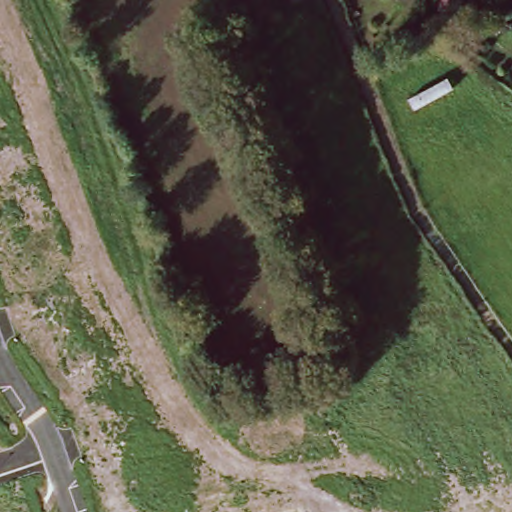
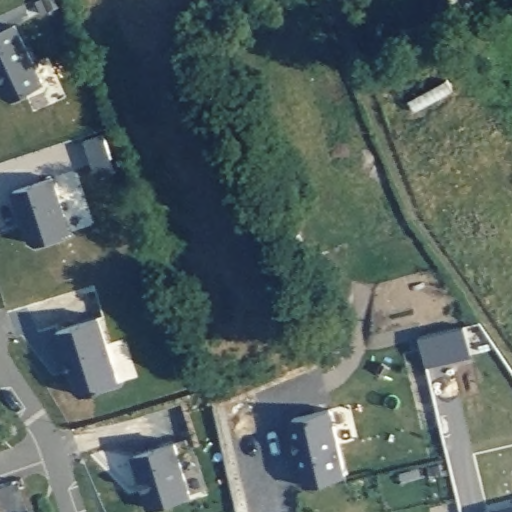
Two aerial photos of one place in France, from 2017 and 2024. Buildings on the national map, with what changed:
new [(45,82),(7,100),(0,87),(0,33),(17,25),(45,82)]
new [(41,244),(32,241),(15,189),(56,174),(74,230),(41,244)]
new [(120,380),(76,395),(56,332),(100,318),(120,380)]
new [(427,367),(420,336),(466,326),(473,356),(427,367)]
new [(347,475),(305,485),(292,433),(288,434),(287,422),(332,411),(347,475)]
new [(142,489),(147,487),(145,478),(140,479),(132,457),(177,443),(193,494),(151,507),(142,489)]
new [(485,512),(512,505),(512,512),(485,512)]

